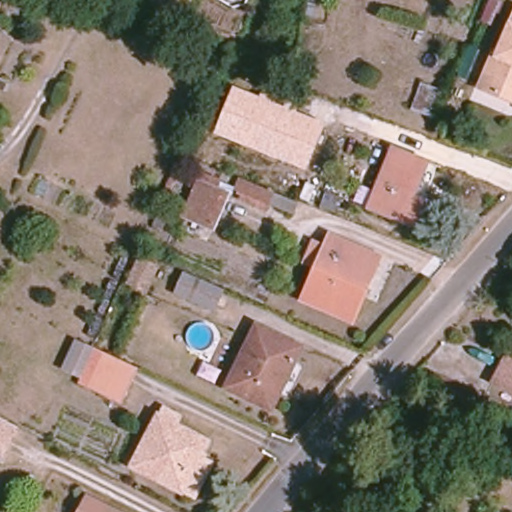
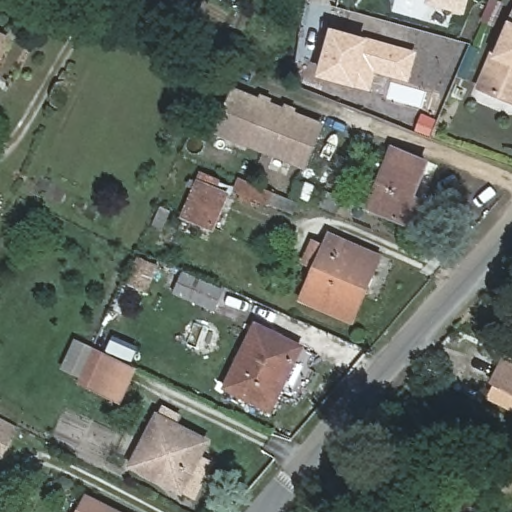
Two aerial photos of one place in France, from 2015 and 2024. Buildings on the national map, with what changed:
unchanged [(190,0),(180,24),(142,9),(145,0),(190,0)]
new [(429,0),(466,0),(463,11),(429,1),(429,0)]
unchanged [(480,91),(494,57),(497,59),(512,25),(512,105),(511,105),(480,91)]
new [(376,73),(372,89),(317,74),(331,27),(417,52),(408,82),(376,73)]
unchanged [(11,37),(0,62),(0,33),(11,37)]
unchanged [(307,170),(212,134),(235,84),(260,94),(264,86),(297,100),(292,110),(326,124),(307,170)]
demolished [(311,109),(316,96),(372,119),(367,131),(311,109)]
unchanged [(395,147),(429,162),(415,197),(427,203),(417,227),(369,207),(395,147)]
unchanged [(200,182),(227,194),(215,227),(187,216),(200,182)]
unchanged [(316,269),(302,263),(313,239),(327,244),(331,235),(382,256),(353,320),(302,298),(316,269)]
unchanged [(161,263),(146,292),(121,281),(135,251),(161,263)]
unchanged [(186,273),(222,290),(214,308),(177,292),(186,273)]
unchanged [(257,325),(302,348),(273,407),(227,386),(257,325)]
unchanged [(132,367),(117,400),(75,381),(90,348),(132,367)]
unchanged [(512,360),(512,397),(491,386),(506,357),(512,360)]
unchanged [(159,415),(210,441),(202,457),(214,465),(196,497),(132,465),(159,415)]
unchanged [(12,435),(2,453),(0,452),(0,429),(12,435)]
unchanged [(81,496),(111,512),(73,512),(81,496)]

